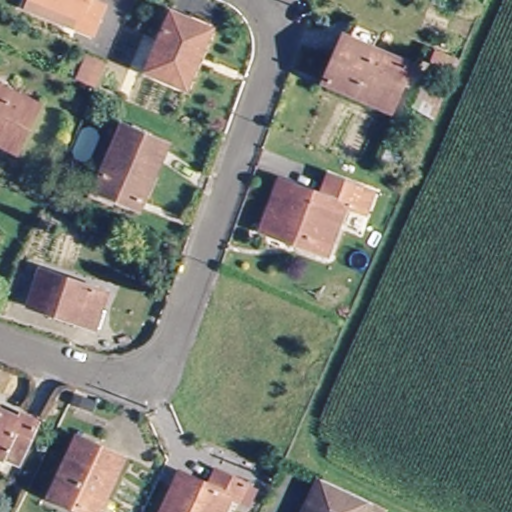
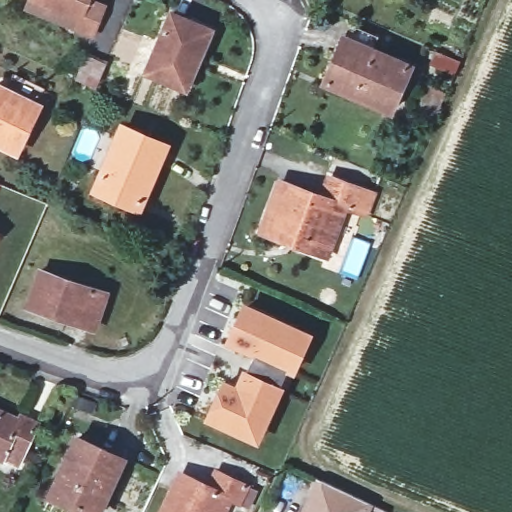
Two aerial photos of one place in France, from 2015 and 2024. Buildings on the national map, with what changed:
unchanged [(92,39),(77,35),(26,11),(31,0),(38,0),(91,0),(90,4),(102,11),(92,39)]
unchanged [(152,75),(176,11),(214,25),(189,88),(152,75)]
unchanged [(387,114),(327,87),(347,47),(352,49),(359,34),(382,43),(375,59),(405,71),(387,114)]
unchanged [(421,65),(427,50),(462,65),(455,79),(421,65)]
unchanged [(67,86),(80,58),(104,66),(92,96),(67,86)]
unchanged [(20,153),(0,144),(0,87),(42,106),(20,153)]
unchanged [(96,192),(122,125),(163,144),(137,209),(96,192)]
unchanged [(367,190),(360,212),(348,207),(326,255),(306,245),(309,237),(277,221),(295,185),(323,197),(333,177),(367,190)]
unchanged [(103,295),(92,323),(35,300),(47,271),(103,295)]
new [(295,375),(290,372),(258,445),(203,420),(223,379),(236,384),(243,368),(247,370),(254,357),(223,343),(243,301),(313,333),(295,375)]
unchanged [(26,456),(2,445),(0,450),(0,411),(37,432),(26,456)]
unchanged [(120,457),(95,508),(56,492),(84,439),(120,457)]
unchanged [(247,486),(238,505),(230,500),(223,512),(170,512),(185,480),(212,491),(219,476),(247,486)]
unchanged [(366,512),(309,512),(322,488),(368,508),(366,512)]

